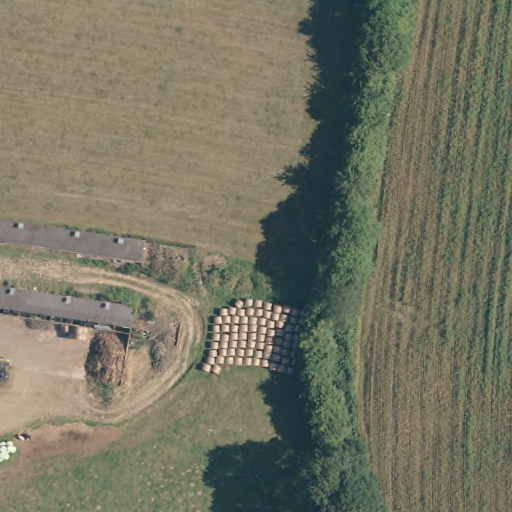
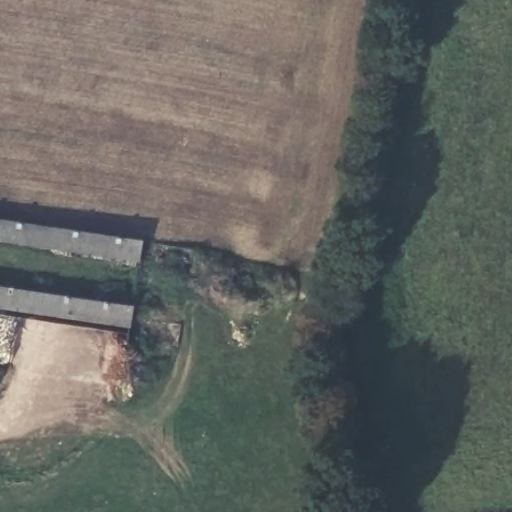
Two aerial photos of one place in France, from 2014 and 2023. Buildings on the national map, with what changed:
unchanged [(0,228),(149,254),(144,282),(0,256),(0,228)]
unchanged [(51,304),(139,321),(134,347),(0,324),(0,297),(8,299),(51,304)]

